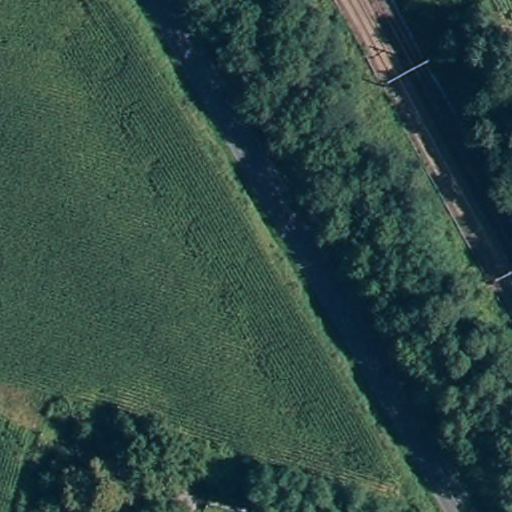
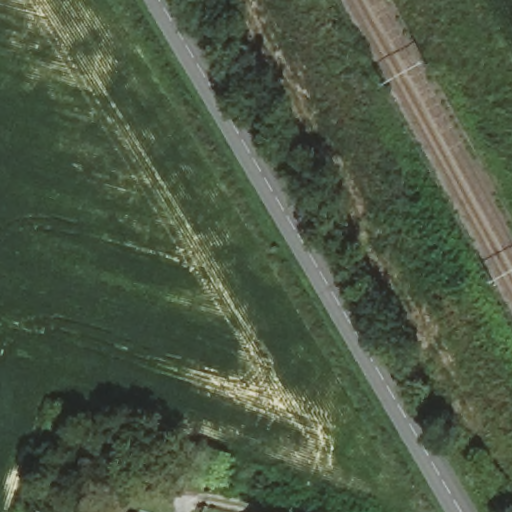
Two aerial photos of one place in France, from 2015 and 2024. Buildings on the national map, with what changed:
unchanged [(98,468),(90,489),(71,483),(78,461),(98,468)]

